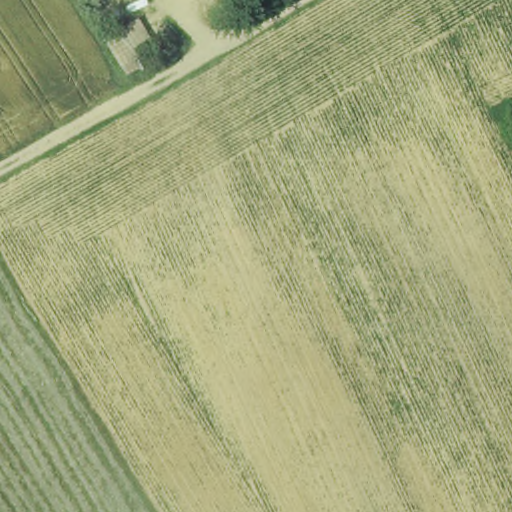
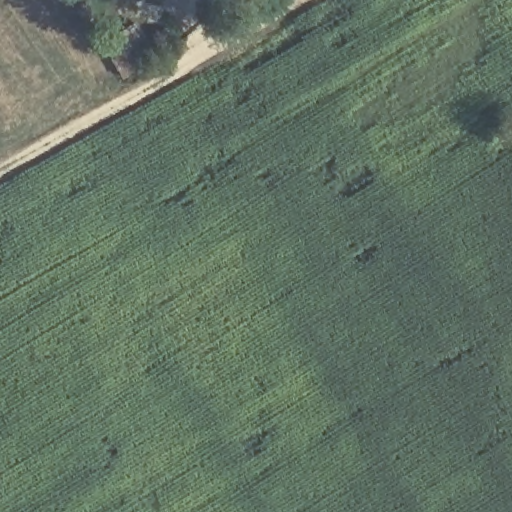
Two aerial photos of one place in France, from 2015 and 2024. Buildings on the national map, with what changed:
unchanged [(161,65),(120,81),(99,42),(137,24),(161,65)]

